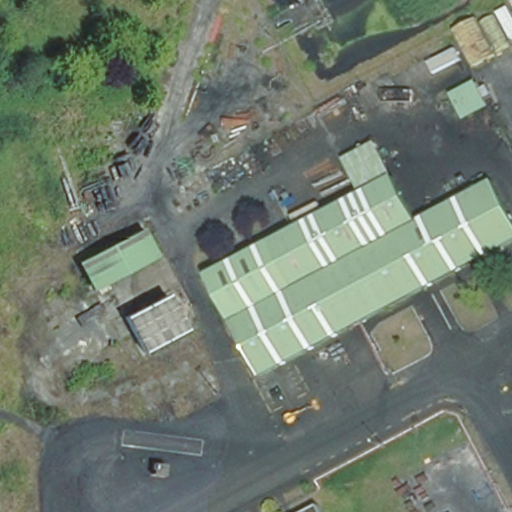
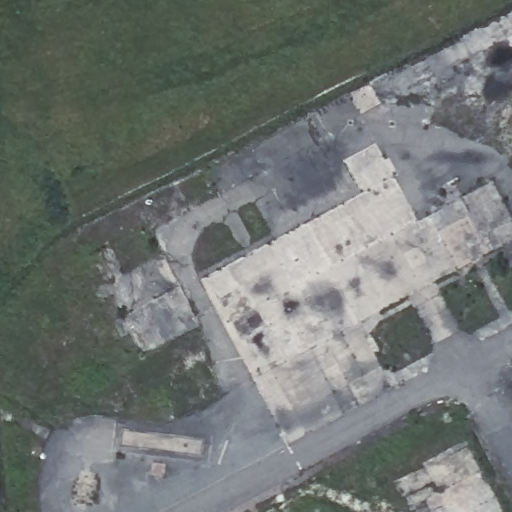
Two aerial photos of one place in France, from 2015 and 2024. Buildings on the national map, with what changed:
demolished [(345,158),(376,140),(420,220),(495,178),(512,210),(512,247),(261,380),(206,272),(363,190),(345,158)]
demolished [(159,255),(94,292),(77,261),(145,227),(159,255)]
demolished [(114,295),(119,305),(145,294),(150,305),(174,292),(182,311),(122,338),(111,321),(104,323),(91,307),(114,295)]
demolished [(322,512),(303,512),(317,504),(322,512)]

